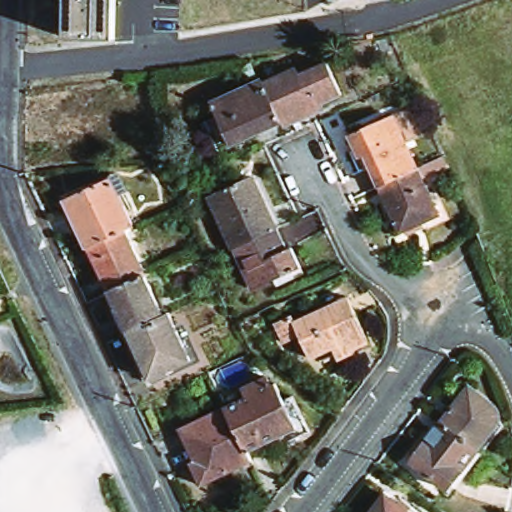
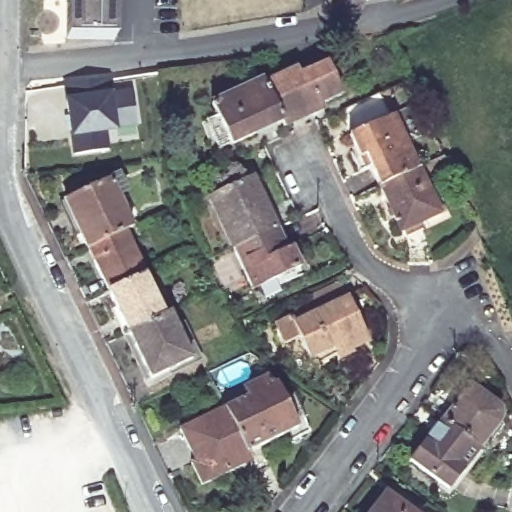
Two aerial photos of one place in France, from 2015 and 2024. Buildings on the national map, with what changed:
unchanged [(70,42),(71,0),(117,0),(116,43),(70,42)]
unchanged [(296,74),(300,80),(326,69),(340,99),(280,125),(264,89),(296,74)]
new [(110,77),(112,91),(134,89),(138,117),(106,121),(110,147),(76,151),(69,98),(75,97),(73,82),(110,77)]
unchanged [(230,149),(211,109),(262,85),(264,89),(280,125),(230,149)]
demolished [(110,94),(110,114),(116,114),(116,126),(100,126),(100,115),(75,115),(75,94),(110,94)]
demolished [(27,99),(65,100),(65,115),(26,114),(27,99)]
unchanged [(366,159),(360,161),(350,140),(393,120),(417,174),(380,190),(366,159)]
unchanged [(447,169),(422,181),(440,220),(401,238),(380,190),(417,174),(444,161),(447,169)]
unchanged [(210,203),(252,183),(277,234),(234,254),(210,203)]
unchanged [(65,205),(110,184),(133,230),(122,235),(87,252),(65,205)]
unchanged [(287,255),(292,254),(300,271),(252,293),(234,254),(277,234),(287,255)]
unchanged [(122,235),(145,282),(110,298),(87,252),(122,235)]
unchanged [(145,282),(164,323),(124,341),(113,318),(119,315),(110,298),(145,282)]
unchanged [(340,364),(335,352),(310,364),(300,340),(284,347),(275,328),(291,320),(294,327),(348,302),(369,347),(352,354),(353,358),(340,364)]
unchanged [(3,314),(0,316),(0,309),(3,314)]
unchanged [(164,323),(170,319),(191,365),(145,387),(124,341),(164,323)]
unchanged [(247,403),(243,392),(266,381),(270,390),(275,388),(297,433),(249,457),(227,412),(247,403)]
unchanged [(470,391),(492,408),(485,418),(498,428),(480,453),(443,425),(470,391)]
unchanged [(202,491),(192,469),(196,467),(180,434),(227,412),(249,457),(253,466),(202,491)]
unchanged [(447,494),(411,467),(443,425),(480,453),(447,494)]
unchanged [(386,494),(409,512),(372,512),(386,494)]

